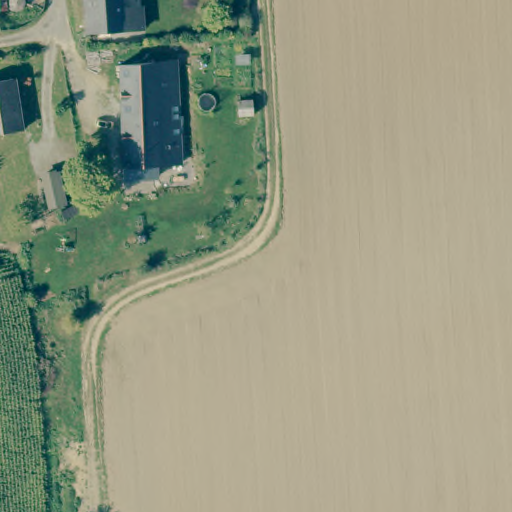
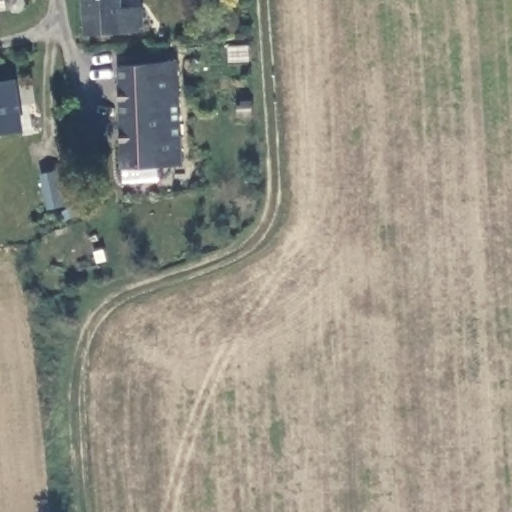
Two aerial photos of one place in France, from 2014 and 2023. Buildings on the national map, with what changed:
unchanged [(0,15),(0,0),(6,0),(8,15),(0,15)]
unchanged [(35,5),(34,7),(34,8),(34,9),(33,10),(32,11),(32,12),(31,12),(30,14),(28,14),(27,14),(26,15),(25,15),(24,15),(23,14),(21,14),(19,12),(18,11),(17,10),(16,9),(16,7),(16,6),(16,5),(16,3),(16,2),(17,0),(33,0),(34,1),(34,2),(35,4),(35,5)]
unchanged [(89,0),(124,0),(124,12),(145,11),(146,34),(89,35),(89,0)]
unchanged [(162,170),(162,183),(128,183),(128,170),(127,170),(126,68),(184,67),(184,69),(186,170),(162,170)]
unchanged [(21,82),(29,133),(0,138),(0,85),(21,82)]
unchanged [(53,165),(57,165),(64,197),(60,198),(45,201),(41,183),(38,169),(44,167),(53,165)]

